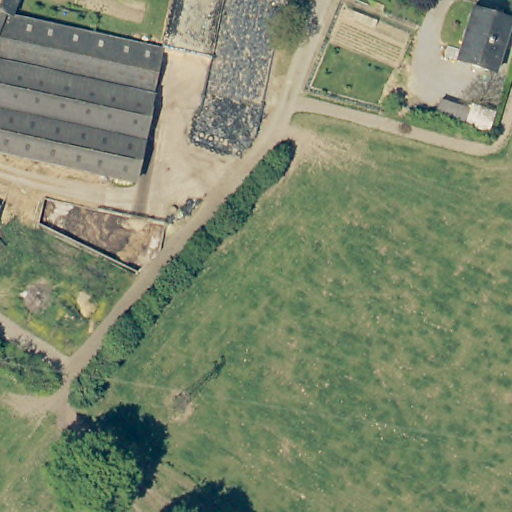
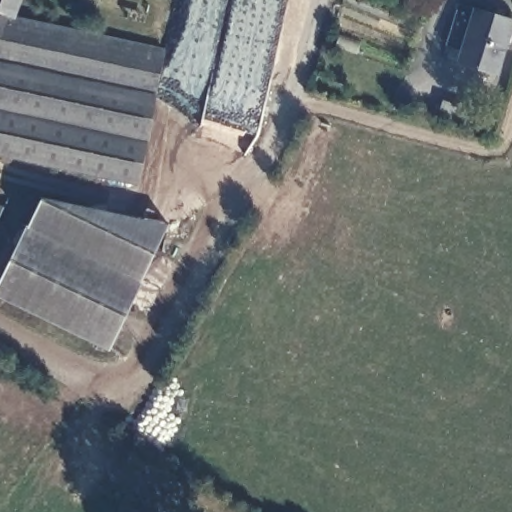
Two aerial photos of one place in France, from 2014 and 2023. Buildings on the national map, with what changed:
unchanged [(25,0),(19,17),(12,15),(0,10),(0,0),(25,0)]
unchanged [(512,22),(496,72),(458,61),(474,8),(512,20),(512,22)]
unchanged [(12,15),(0,44),(0,10),(12,15)]
unchanged [(143,182),(0,148),(0,44),(12,15),(19,17),(27,19),(169,51),(160,96),(143,182)]
unchanged [(472,110),(468,122),(438,112),(442,100),(472,110)]
new [(25,225),(42,195),(167,224),(140,280),(109,347),(0,297),(0,275),(25,225)]
unchanged [(7,208),(0,222),(0,205),(7,208)]

